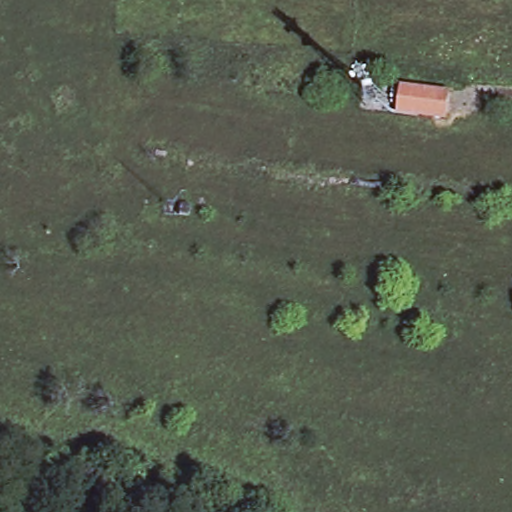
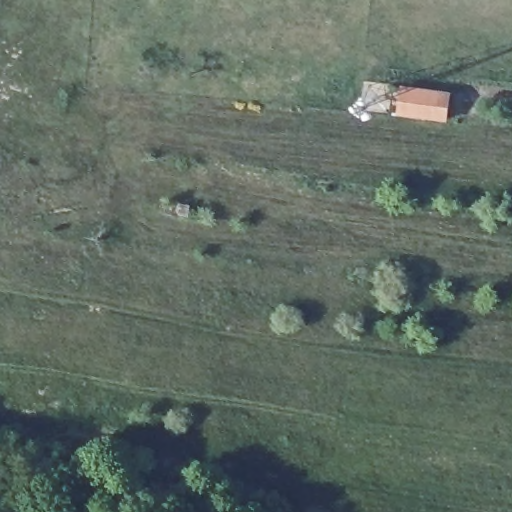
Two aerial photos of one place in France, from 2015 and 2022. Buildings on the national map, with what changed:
unchanged [(396,112),(400,87),(447,94),(443,119),(396,112)]
unchanged [(171,211),(173,200),(183,202),(181,212),(171,211)]

